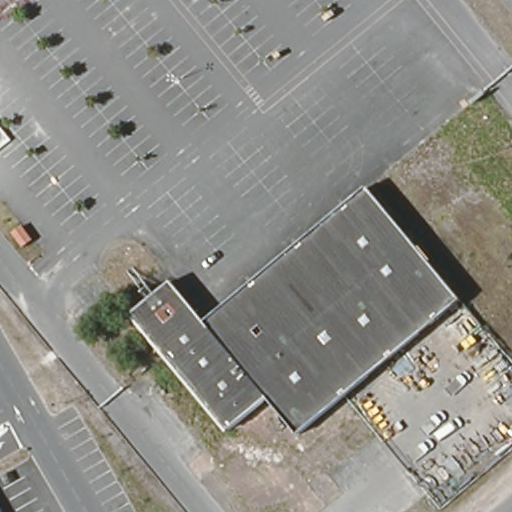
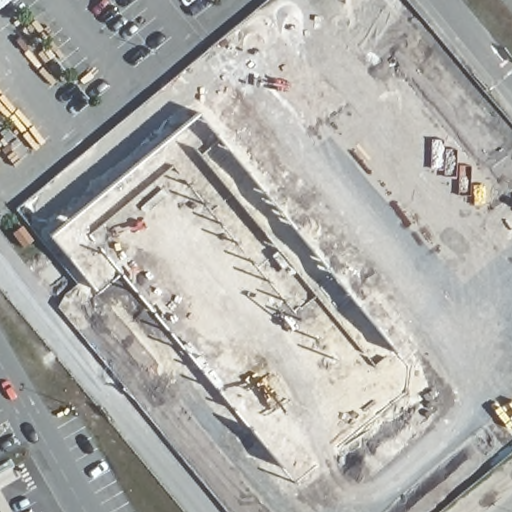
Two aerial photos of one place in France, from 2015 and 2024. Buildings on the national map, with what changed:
demolished [(149,304),(136,288),(148,280),(160,294),(172,283),(207,325),(370,192),(460,301),(299,436),(269,400),(232,431),(135,315),(149,304)]

